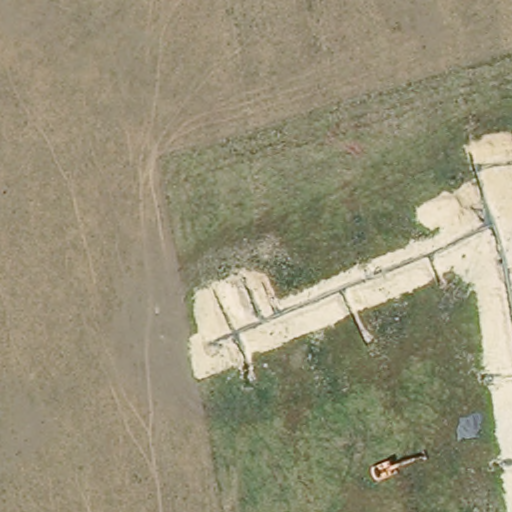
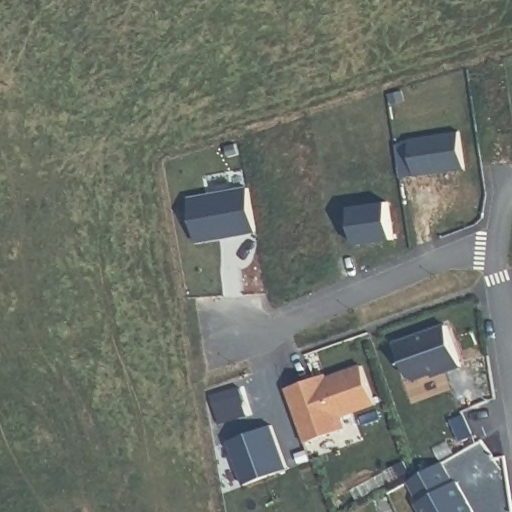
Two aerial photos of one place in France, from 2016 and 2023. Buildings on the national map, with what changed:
new [(405,139),(453,131),(460,168),(410,175),(405,139)]
new [(248,190),(255,233),(196,244),(188,199),(248,190)]
new [(346,208),(383,202),(389,240),(352,245),(346,208)]
new [(442,325),(456,365),(438,372),(437,369),(410,379),(405,377),(392,343),(442,325)]
new [(310,377),(312,382),(357,365),(371,403),(335,416),(340,428),(300,443),(280,388),(310,377)]
new [(449,483),(451,481),(469,512),(417,512),(412,504),(415,502),(403,481),(436,462),(449,483)]

